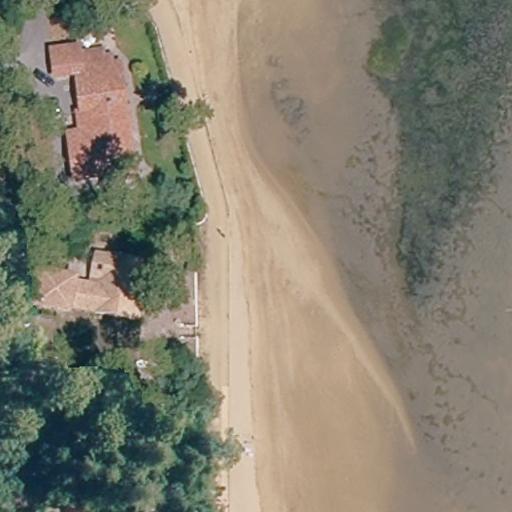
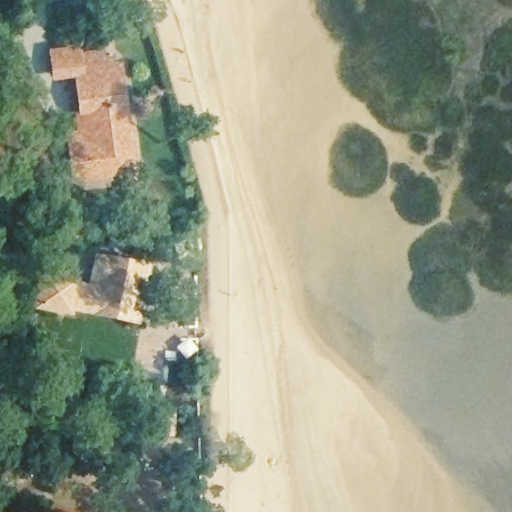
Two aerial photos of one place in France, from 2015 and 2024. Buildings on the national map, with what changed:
unchanged [(139,175),(140,176),(142,177),(143,179),(143,181),(144,182),(144,185),(144,186),(143,189),(142,190),(141,192),(140,194),(138,195),(136,195),(134,195),(132,195),(130,195),(128,195),(127,194),(125,193),(124,191),(123,190),(122,188),(121,186),(79,193),(73,148),(86,146),(83,121),(87,120),(82,86),(60,89),(57,65),(82,62),(83,68),(107,65),(107,70),(115,69),(116,77),(124,76),(137,174),(139,175)]
unchanged [(122,323),(72,313),(70,318),(58,315),(58,318),(31,313),(37,285),(79,293),(79,298),(98,302),(106,267),(117,270),(116,274),(131,277),(122,323)]
unchanged [(150,417),(173,416),(174,436),(151,437),(150,417)]

